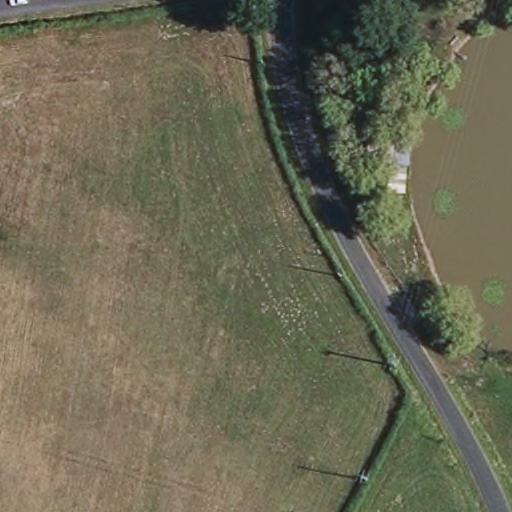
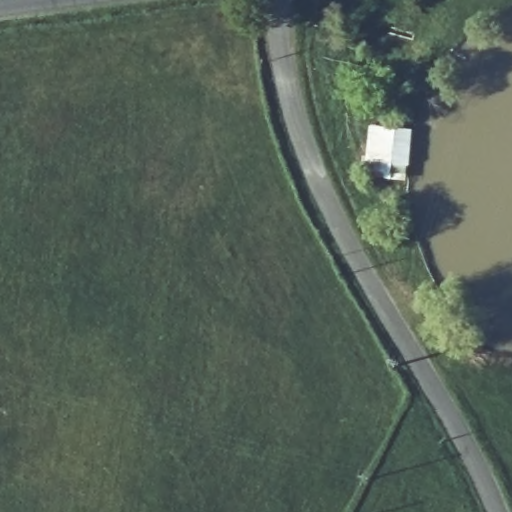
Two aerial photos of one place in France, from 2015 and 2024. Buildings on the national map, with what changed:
new [(407,169),(408,189),(391,192),(388,180),(371,175),(367,127),(375,125),(392,131),(401,127),(403,132),(410,131),(412,140),(407,169)]

